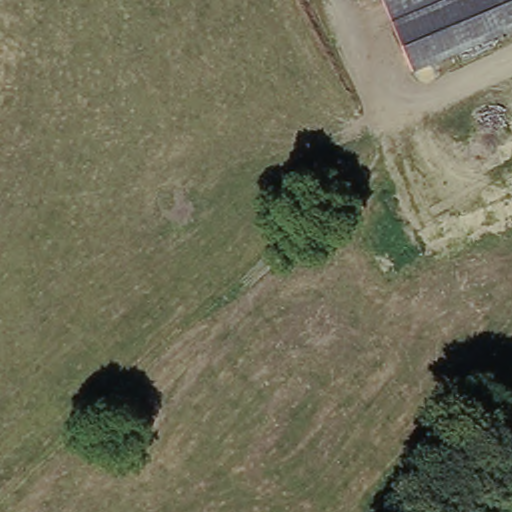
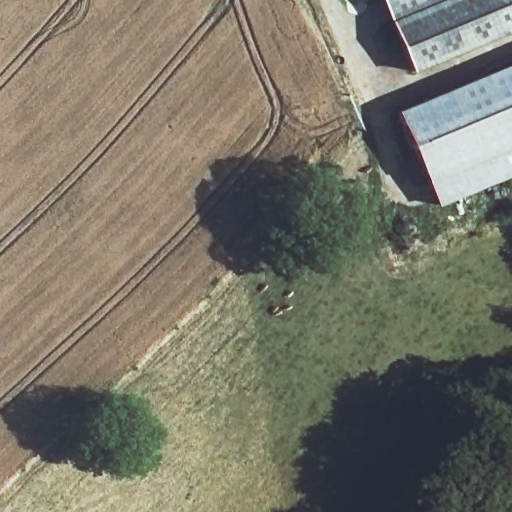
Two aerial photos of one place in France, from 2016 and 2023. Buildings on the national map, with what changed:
unchanged [(512,36),(416,76),(380,0),(512,0),(512,36)]
new [(397,112),(512,64),(512,176),(438,207),(397,112)]

